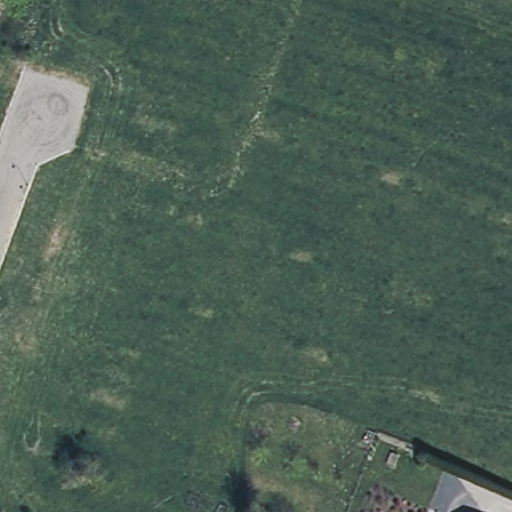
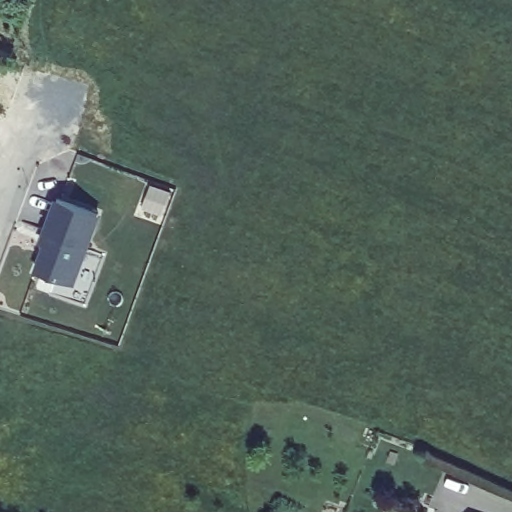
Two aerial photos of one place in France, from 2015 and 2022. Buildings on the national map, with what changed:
new [(101,215),(75,285),(32,272),(41,246),(38,245),(54,198),(101,215)]

